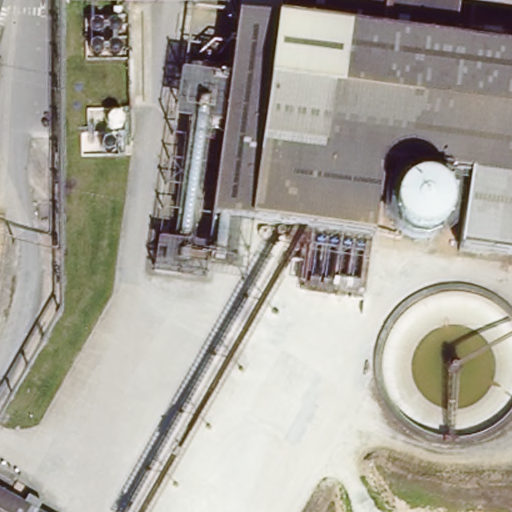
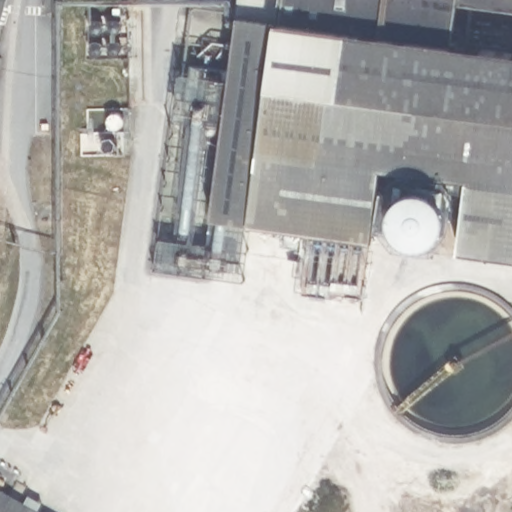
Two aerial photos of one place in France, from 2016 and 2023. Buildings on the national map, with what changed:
unchanged [(6,0),(0,21),(0,0),(6,0)]
unchanged [(512,53),(512,256),(472,252),(482,174),(390,161),(380,239),(343,234),(315,230),(218,218),(243,0),(371,0),(367,36),(512,53)]
unchanged [(512,0),(512,9),(429,0),(512,0)]
unchanged [(458,207),(459,215),(457,222),(453,229),(448,234),(441,238),(434,241),(426,241),(419,239),(412,235),(407,230),(402,224),(400,216),(400,209),(402,201),(406,194),(411,189),(417,185),(425,183),(432,182),(440,184),(447,188),(452,193),(456,200),(458,207)]
unchanged [(380,239),(372,302),(335,297),(343,234),(380,239)]
unchanged [(21,479),(5,507),(15,512),(0,512),(0,467),(21,479)]

